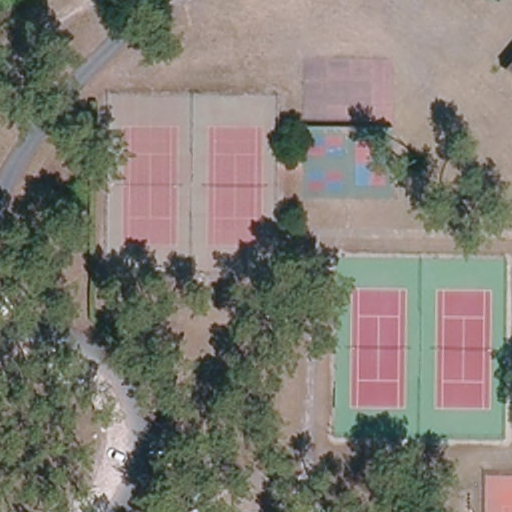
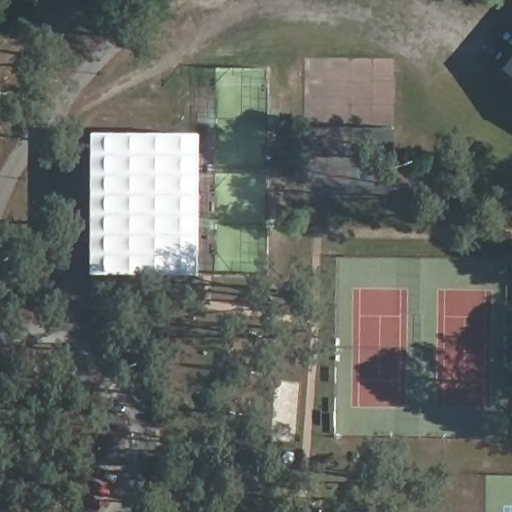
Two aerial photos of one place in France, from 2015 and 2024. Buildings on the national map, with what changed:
unchanged [(512,63),(512,75),(507,70),(512,63)]
new [(201,136),(200,276),(96,276),(97,135),(201,136)]

